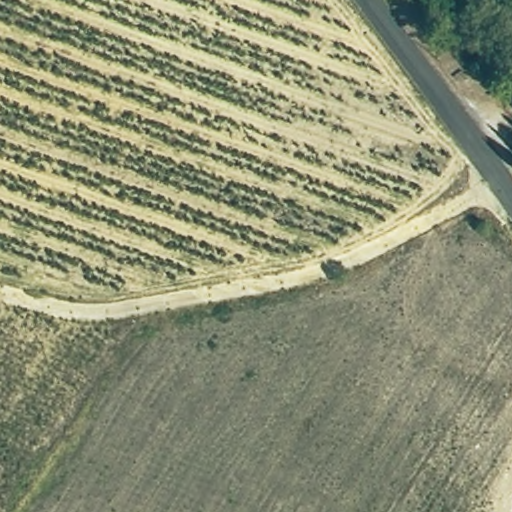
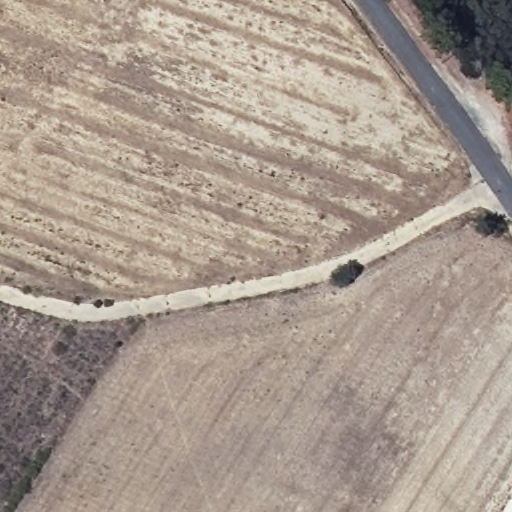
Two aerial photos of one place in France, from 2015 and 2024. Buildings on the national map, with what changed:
[]

